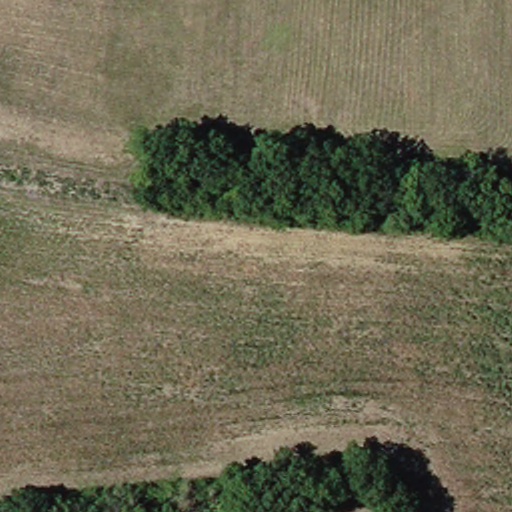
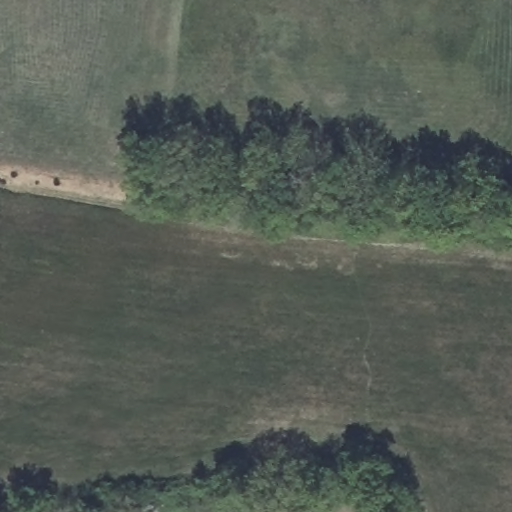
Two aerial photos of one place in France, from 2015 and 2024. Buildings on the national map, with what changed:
[]

